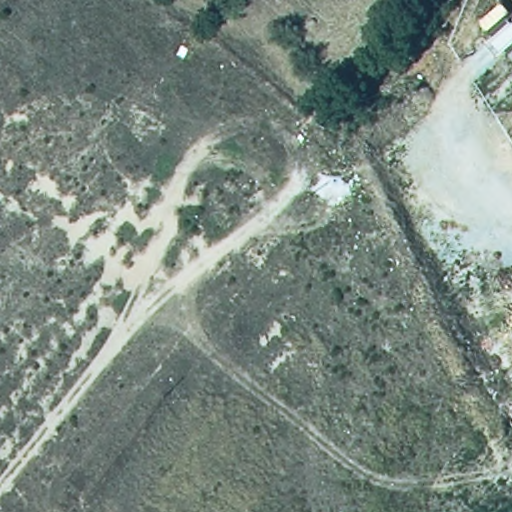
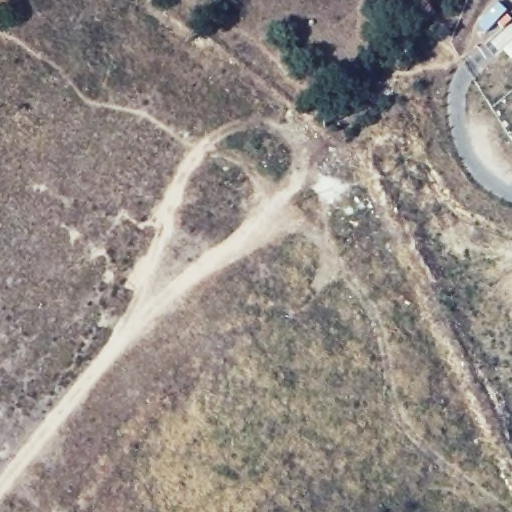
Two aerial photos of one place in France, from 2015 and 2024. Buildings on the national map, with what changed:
[]

